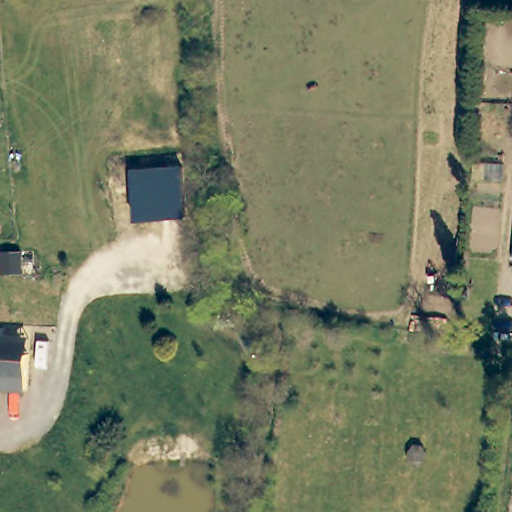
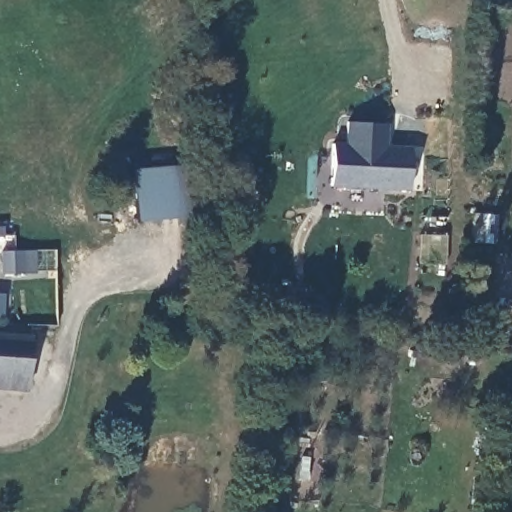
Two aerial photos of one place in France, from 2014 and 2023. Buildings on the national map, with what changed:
new [(346,144),(346,123),(388,124),(387,145),(409,147),(409,192),(331,188),(332,143),(346,144)]
unchanged [(196,164),(200,215),(136,221),(130,170),(196,164)]
unchanged [(27,355),(26,355),(24,391),(0,389),(0,337),(4,338),(28,339),(27,355)]

